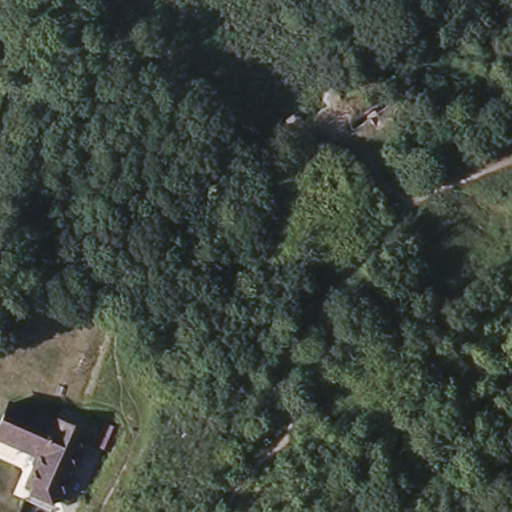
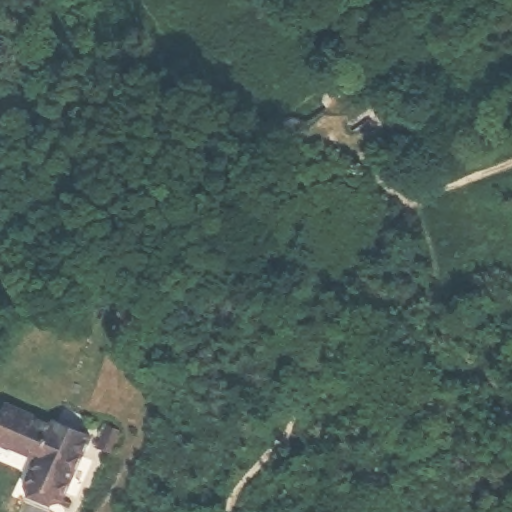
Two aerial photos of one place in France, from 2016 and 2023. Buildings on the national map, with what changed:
unchanged [(305,127),(325,116),(318,105),(323,95),(332,90),(341,91),(346,96),(363,89),(377,111),(316,146),(305,127)]
unchanged [(51,433),(54,427),(86,443),(57,503),(25,487),(38,459),(0,440),(0,420),(4,411),(51,433)]

